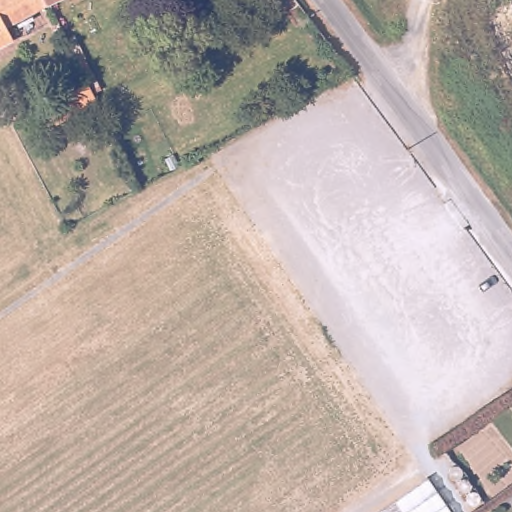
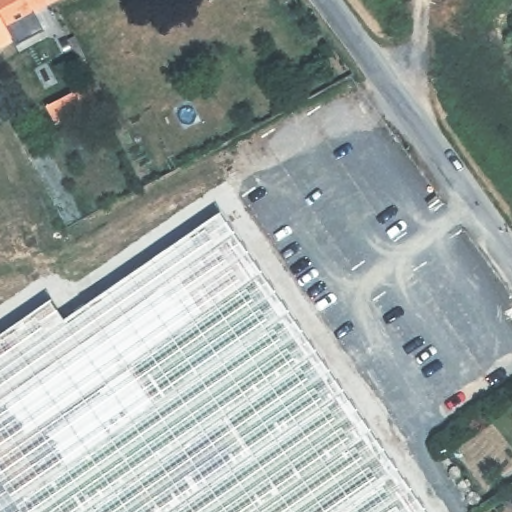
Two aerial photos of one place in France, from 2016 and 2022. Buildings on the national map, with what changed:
unchanged [(19,39),(0,48),(0,0),(55,0),(56,2),(13,25),(19,39)]
unchanged [(55,0),(60,0),(56,2),(55,0)]
unchanged [(57,122),(48,105),(90,83),(99,101),(57,122)]
new [(51,300),(64,321),(221,212),(410,490),(379,512),(0,512),(0,335),(51,300)]
unchanged [(426,478),(450,512),(379,512),(426,478)]

